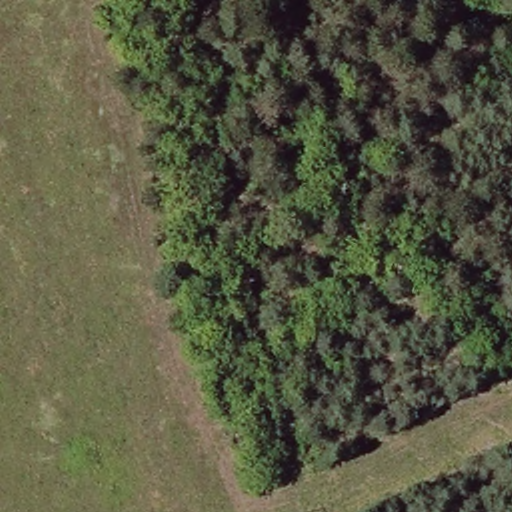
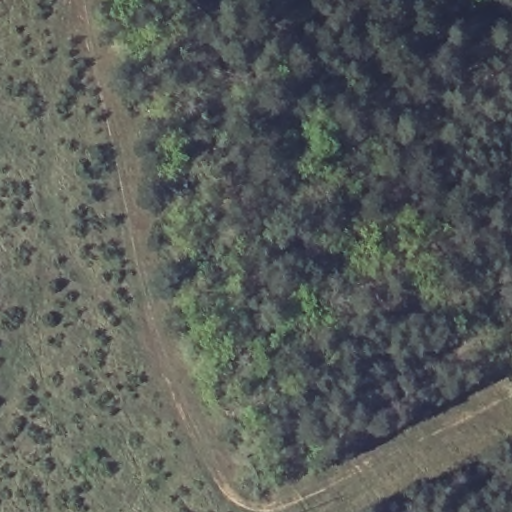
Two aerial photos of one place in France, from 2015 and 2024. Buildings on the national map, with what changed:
[]

